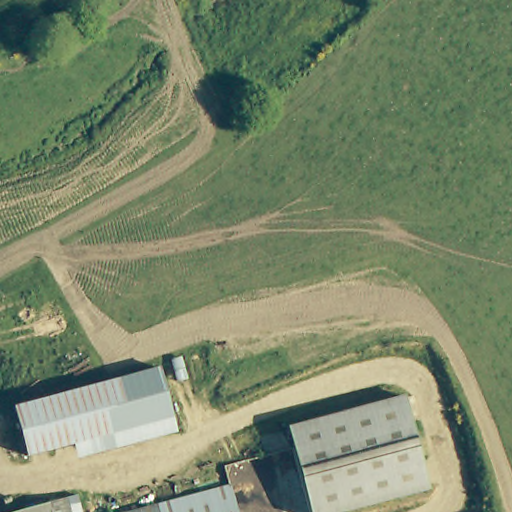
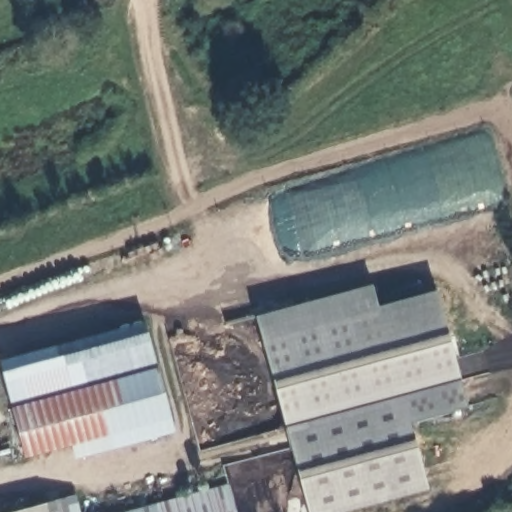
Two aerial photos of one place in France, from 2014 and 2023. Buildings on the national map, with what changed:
new [(372,283),(379,305),(437,289),(460,378),(467,407),(411,423),(428,489),(340,512),(310,512),(287,425),(257,315),(372,283)]
new [(16,411),(1,358),(145,320),(149,331),(161,369),(16,411)]
unchanged [(16,411),(161,369),(175,417),(78,445),(30,459),(16,411)]
unchanged [(225,490),(232,512),(147,512),(225,490)]
unchanged [(42,512),(39,512),(42,511),(42,512)]

